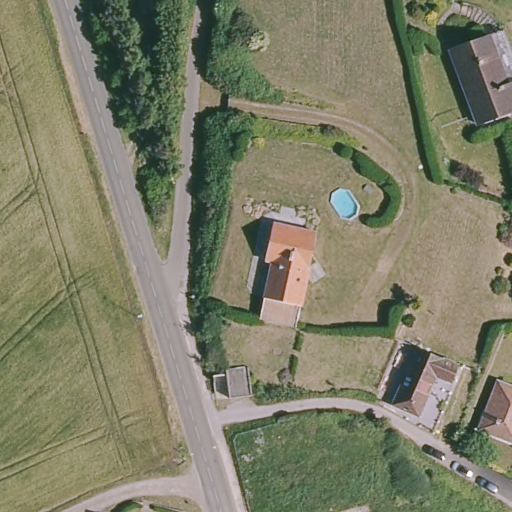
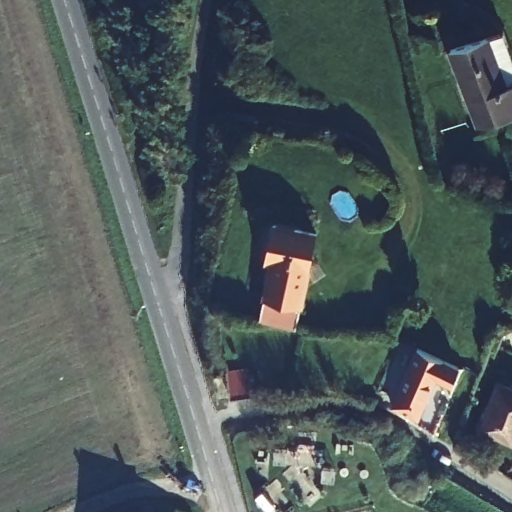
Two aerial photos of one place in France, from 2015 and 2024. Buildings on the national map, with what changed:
unchanged [(447,51),(486,39),(500,34),(512,69),(512,112),(473,125),(447,51)]
unchanged [(275,255),(267,253),(273,218),(317,227),(296,319),(262,314),(275,255)]
unchanged [(445,375),(432,368),(414,408),(386,397),(413,338),(453,357),(445,375)]
unchanged [(229,372),(245,372),(248,401),(230,402),(229,372)]
unchanged [(512,437),(482,427),(495,382),(512,387),(512,437)]

